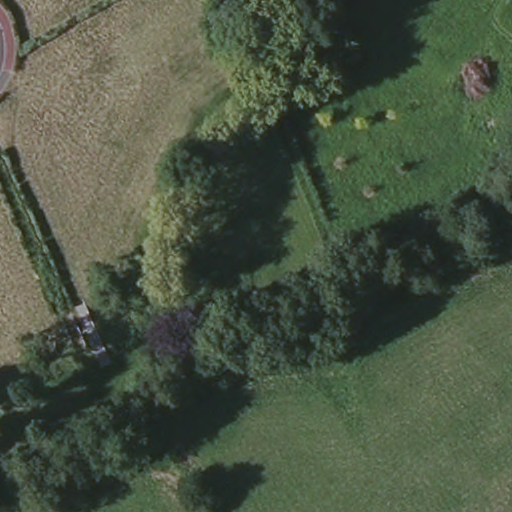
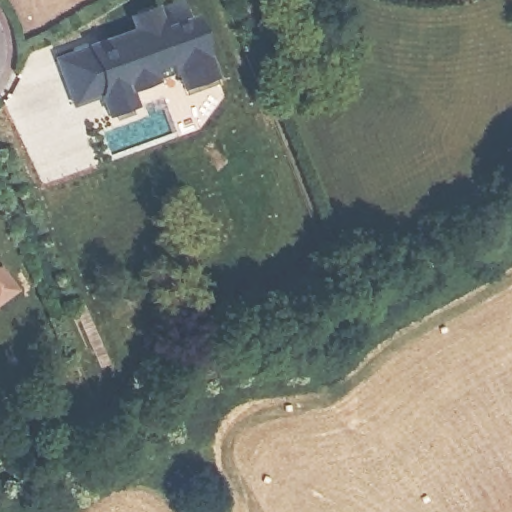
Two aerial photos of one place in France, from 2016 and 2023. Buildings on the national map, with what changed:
new [(59,59),(90,47),(94,57),(111,52),(108,42),(135,32),(130,19),(161,11),(169,29),(194,21),(218,78),(182,89),(176,74),(151,82),(154,83),(130,91),(135,107),(108,116),(101,100),(75,109),(59,59)]
new [(15,287),(0,298),(0,266),(15,287)]

